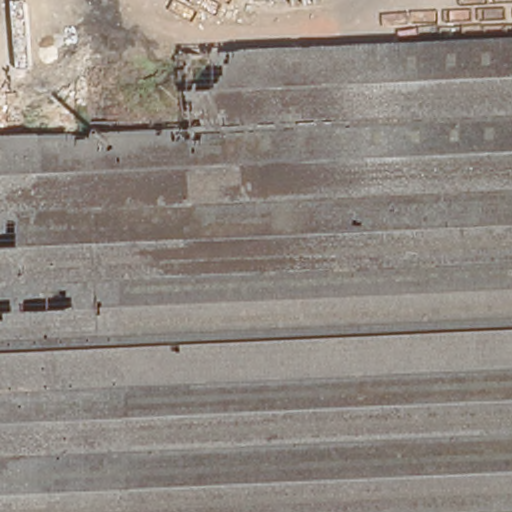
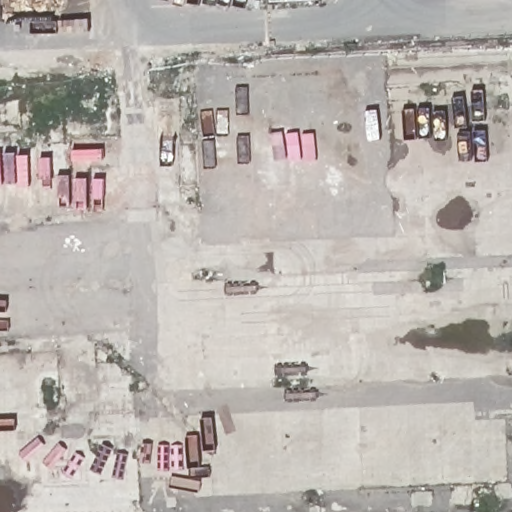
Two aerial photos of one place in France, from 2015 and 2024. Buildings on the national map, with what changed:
demolished [(195,382),(188,90),(187,56),(217,55),(512,43),(512,368),(195,382)]
demolished [(512,368),(512,512),(0,512),(0,391),(195,382),(512,368)]

